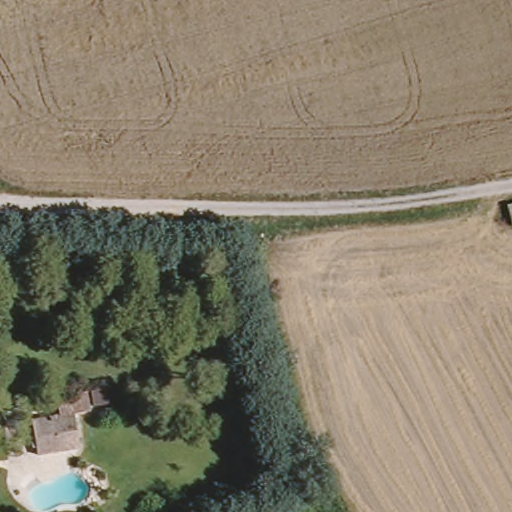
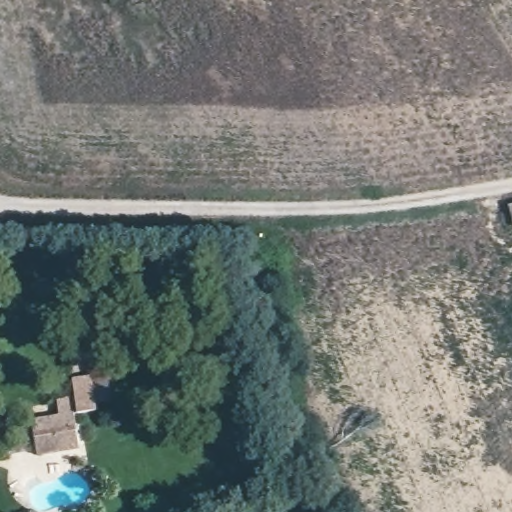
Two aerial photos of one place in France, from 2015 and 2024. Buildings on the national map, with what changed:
unchanged [(76,415),(82,446),(40,455),(34,420),(58,415),(54,397),(89,389),(93,412),(76,415)]

